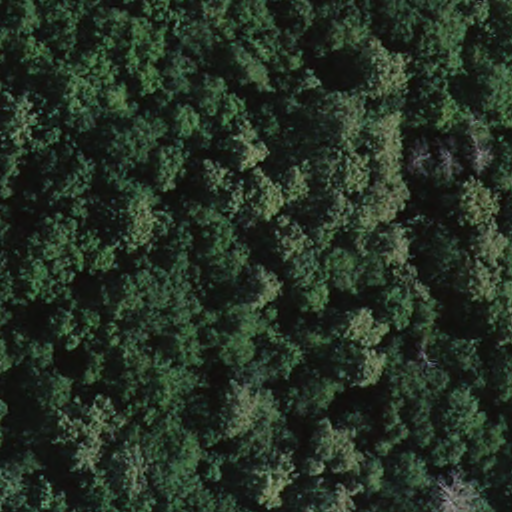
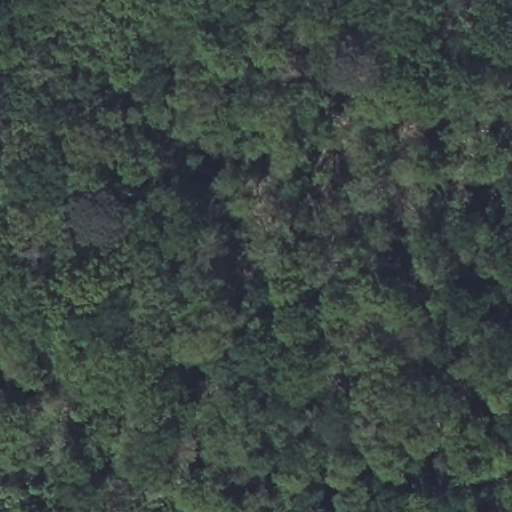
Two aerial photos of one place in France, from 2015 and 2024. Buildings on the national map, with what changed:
[]

